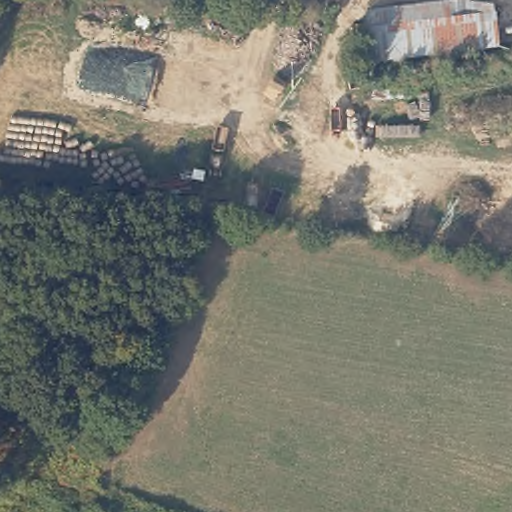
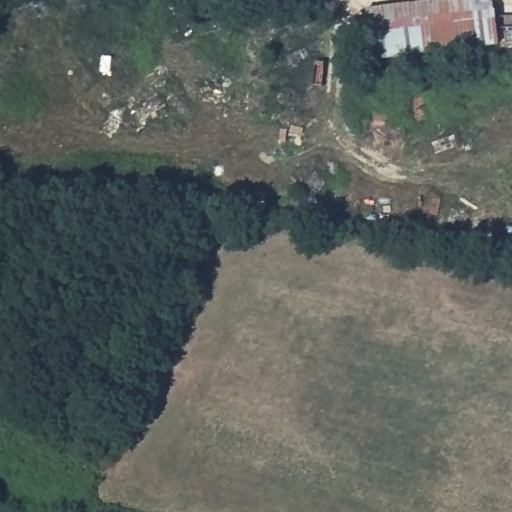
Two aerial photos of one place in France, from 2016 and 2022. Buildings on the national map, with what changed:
unchanged [(480,43),(378,50),(375,24),(478,16),(480,43)]

